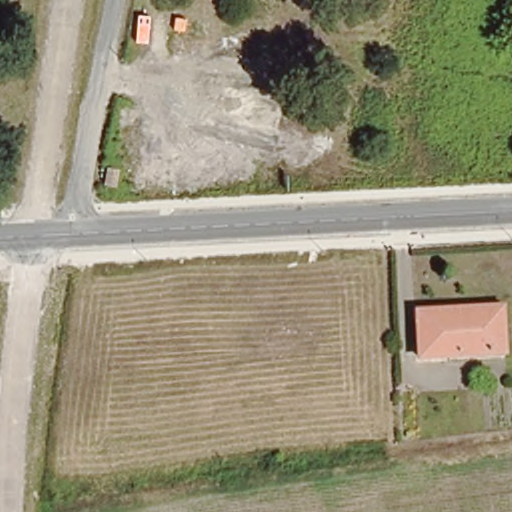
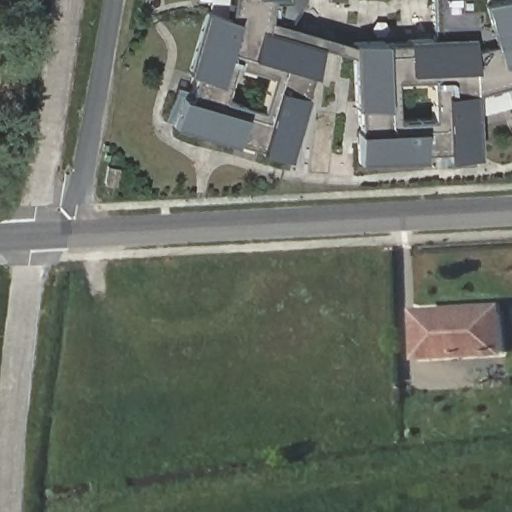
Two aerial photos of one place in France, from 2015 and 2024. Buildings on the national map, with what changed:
new [(506,89),(475,92),(477,155),(448,157),(448,151),(423,150),(424,159),(361,161),(358,131),(353,55),(321,45),(290,159),(260,150),(174,127),(181,96),(190,98),(196,75),(190,73),(207,9),(228,16),(231,0),(305,0),(290,27),(354,43),(436,38),(435,0),(488,0),(488,2),(496,0),(512,0),(512,117),(506,89)]
new [(110,167),(121,168),(117,186),(107,184),(110,167)]
unchanged [(134,190),(145,191),(142,209),(132,207),(134,190)]
unchanged [(420,356),(418,314),(502,312),(502,355),(420,356)]

